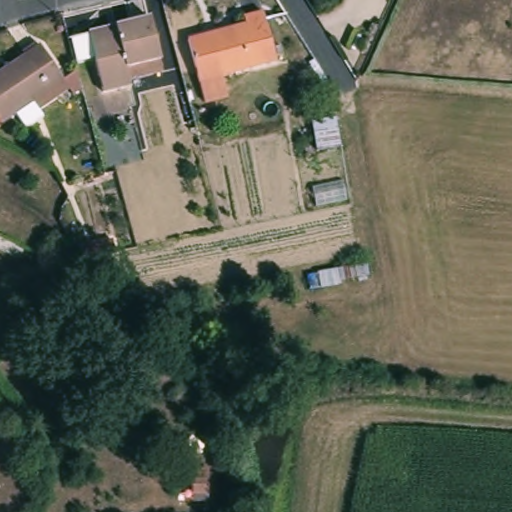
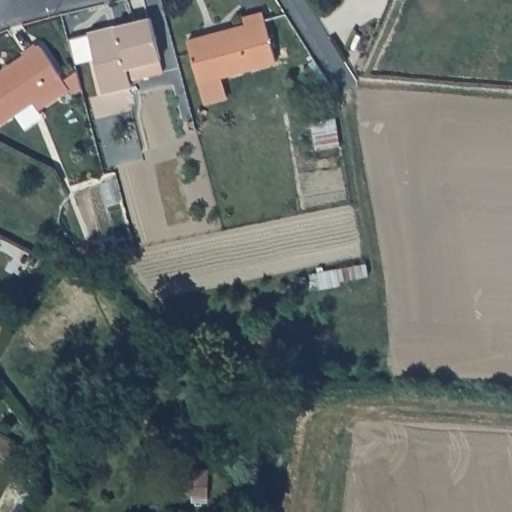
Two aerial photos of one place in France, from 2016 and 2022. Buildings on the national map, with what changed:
unchanged [(202,102),(197,82),(186,42),(242,26),(240,20),(261,14),(262,22),(273,61),(219,76),(225,97),(202,102)]
unchanged [(159,60),(162,72),(130,80),(131,85),(102,92),(87,35),(149,19),(160,59),(159,60)]
unchanged [(0,123),(0,74),(40,47),(62,80),(76,71),(81,89),(72,95),(69,89),(39,110),(32,100),(0,123)]
unchanged [(341,118),(346,147),(324,151),(318,122),(341,118)]
unchanged [(215,480),(215,495),(200,493),(200,480),(215,480)]

